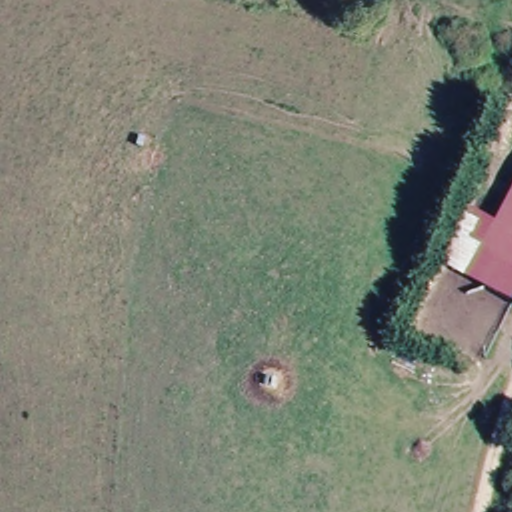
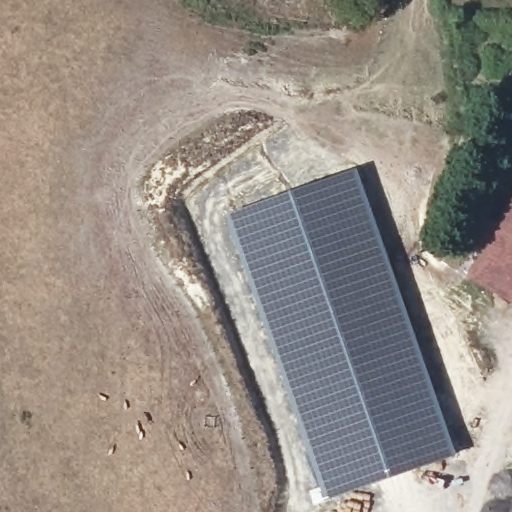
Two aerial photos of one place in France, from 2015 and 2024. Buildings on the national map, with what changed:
new [(296,186),(357,166),(459,455),(396,478),(327,499),(312,465),(252,296),(226,212),(296,186)]
unchanged [(512,209),(512,300),(472,279),(512,209)]

